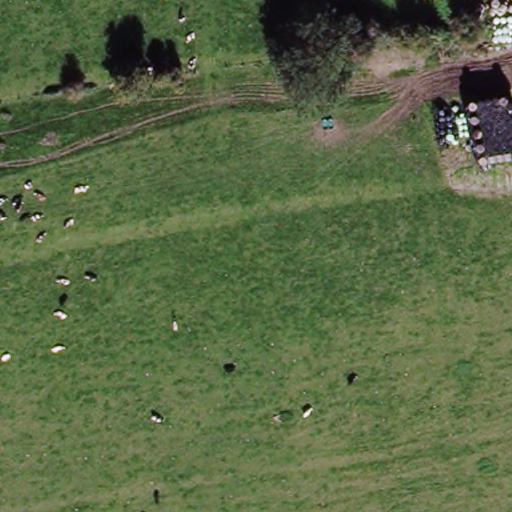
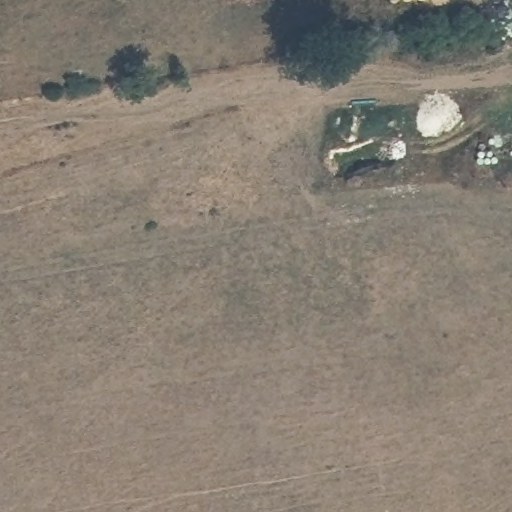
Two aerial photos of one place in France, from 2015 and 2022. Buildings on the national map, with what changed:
[]

